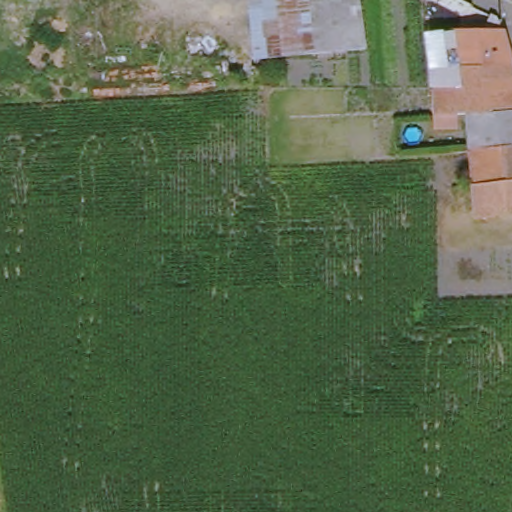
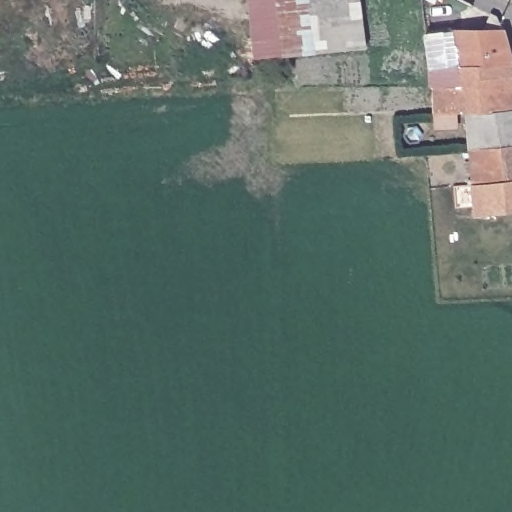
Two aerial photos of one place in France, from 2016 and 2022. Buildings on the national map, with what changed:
unchanged [(249,0),(359,0),(365,46),(255,58),(249,0)]
unchanged [(495,35),(494,24),(479,15),(481,9),(505,21),(507,35),(512,54),(512,73),(465,71),(462,35),(495,35)]
unchanged [(430,34),(462,35),(465,71),(467,89),(440,89),(437,89),(430,34)]
unchanged [(440,89),(467,89),(465,71),(512,73),(512,117),(472,119),(442,119),(440,89)]
unchanged [(472,119),(512,117),(512,149),(475,153),(472,119)]
unchanged [(462,124),(462,136),(443,135),(442,124),(462,124)]
unchanged [(512,149),(512,216),(479,218),(475,153),(512,149)]

